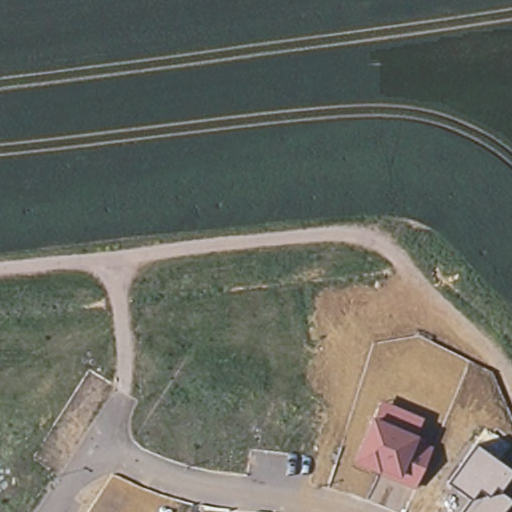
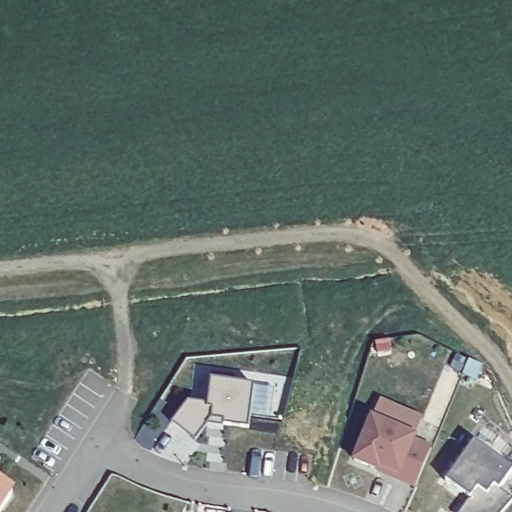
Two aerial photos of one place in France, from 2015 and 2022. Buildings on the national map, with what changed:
new [(188,397),(207,401),(212,374),(254,380),(248,422),(223,421),(223,423),(207,421),(195,439),(172,419),(188,397)]
unchanged [(424,418),(417,439),(433,445),(417,488),(352,464),(377,400),(424,418)]
unchanged [(502,489),(512,498),(512,501),(504,512),(460,512),(470,498),(445,481),(475,440),(512,470),(512,475),(502,489)]
new [(4,512),(0,512),(0,484),(15,494),(4,512)]

